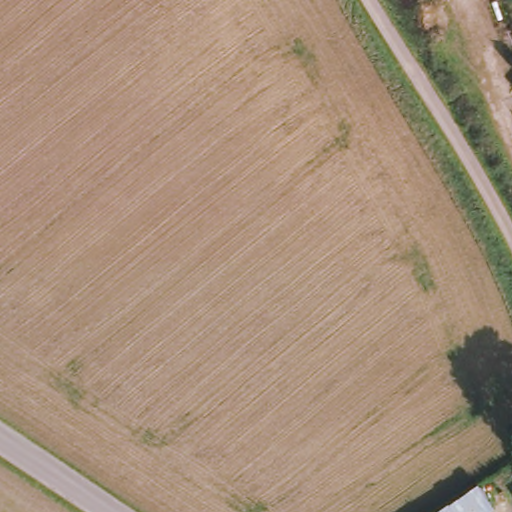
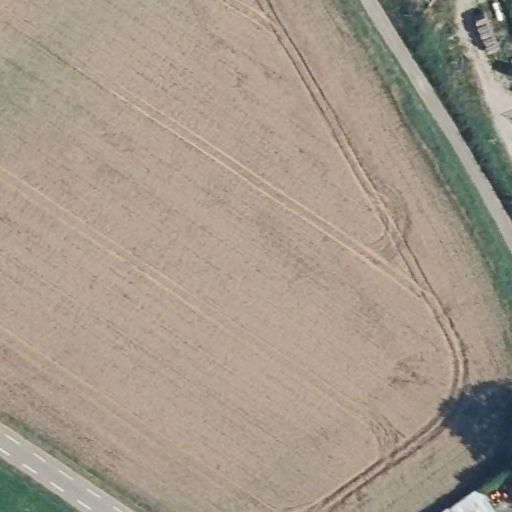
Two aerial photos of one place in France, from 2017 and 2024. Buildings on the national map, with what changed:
unchanged [(444,505),(449,512),(435,512),(444,505)]

